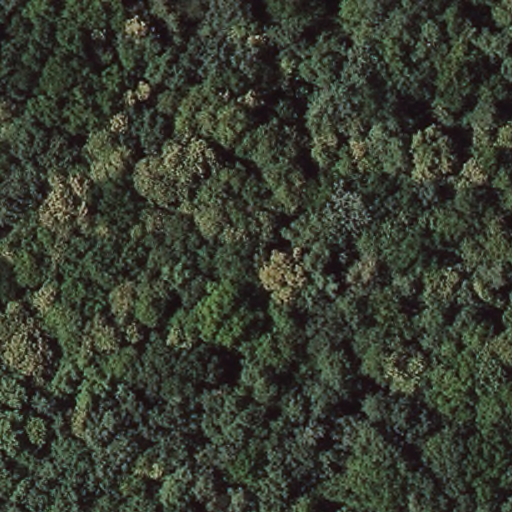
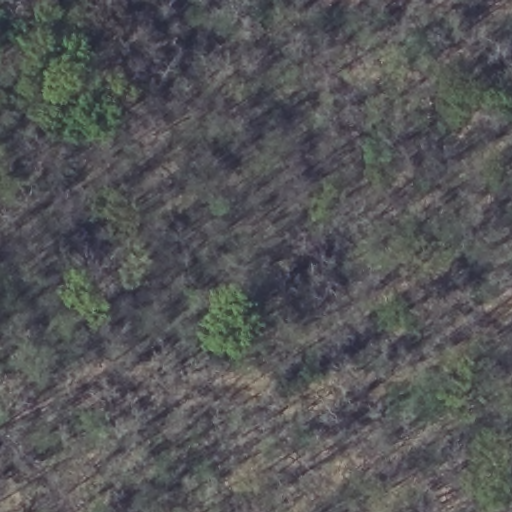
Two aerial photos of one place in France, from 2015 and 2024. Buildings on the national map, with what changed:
[]

